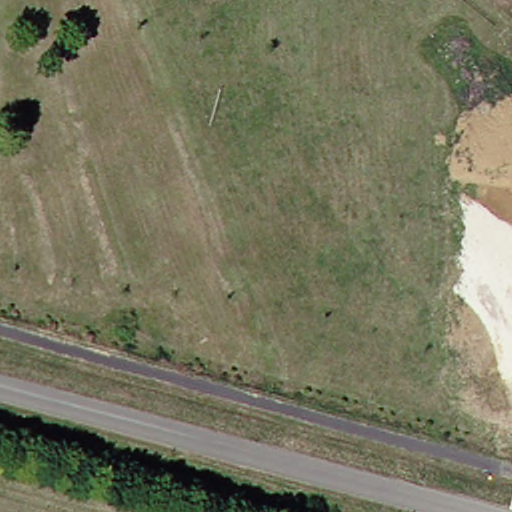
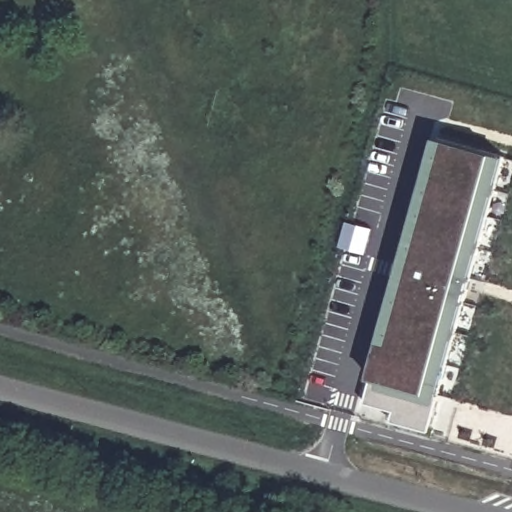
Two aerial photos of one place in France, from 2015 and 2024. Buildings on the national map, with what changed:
new [(422,392),(366,377),(432,141),(489,156),(422,392)]
new [(398,386),(422,392),(489,156),(505,161),(438,403),(431,429),(395,419),(398,408),(369,399),(374,380),(398,386)]

